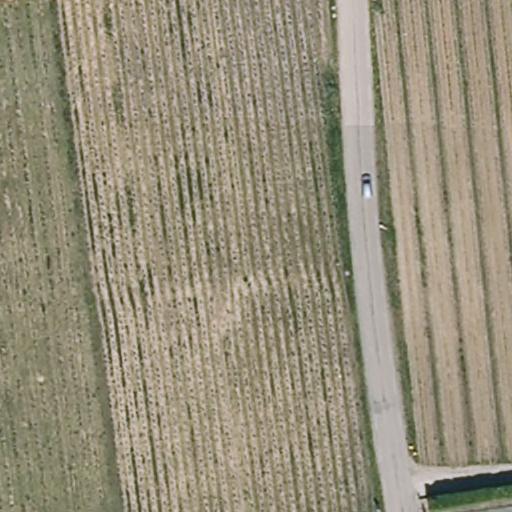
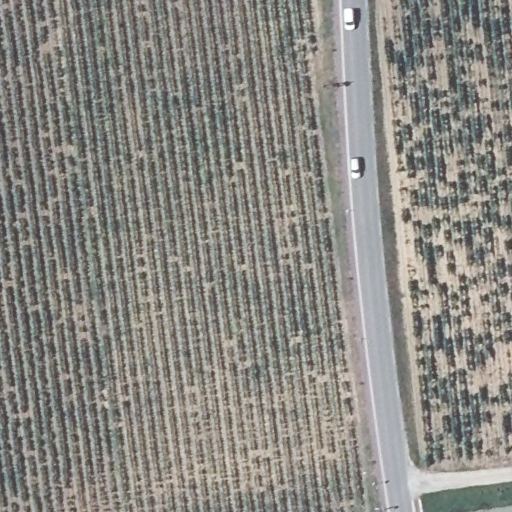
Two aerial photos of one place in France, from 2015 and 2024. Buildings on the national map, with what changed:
[]

